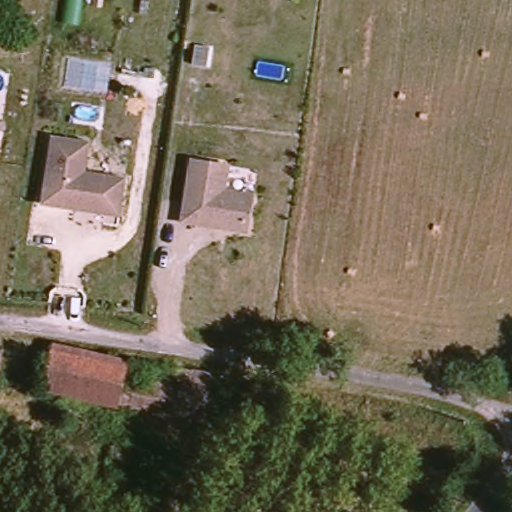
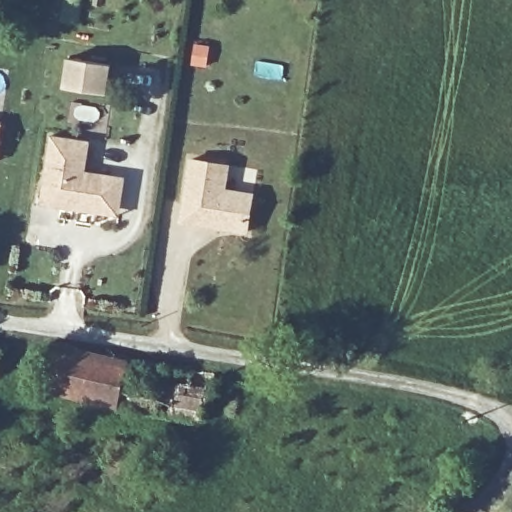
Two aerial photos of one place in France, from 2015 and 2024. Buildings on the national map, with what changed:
new [(67,57),(112,64),(108,94),(63,87),(67,57)]
unchanged [(54,133),(93,138),(89,168),(91,168),(129,173),(124,212),(85,207),(45,201),(54,133)]
unchanged [(184,221),(192,160),(229,165),(226,189),(229,190),(249,192),(255,193),(250,230),(243,229),(223,227),(218,226),(201,224),(184,221)]
unchanged [(84,356),(140,365),(206,373),(195,421),(134,413),(101,407),(32,392),(41,349),(84,356)]
unchanged [(139,445),(134,476),(140,477),(137,493),(107,488),(114,445),(139,445)]

